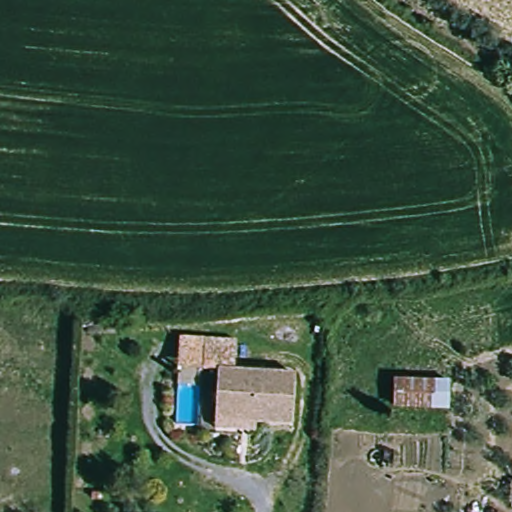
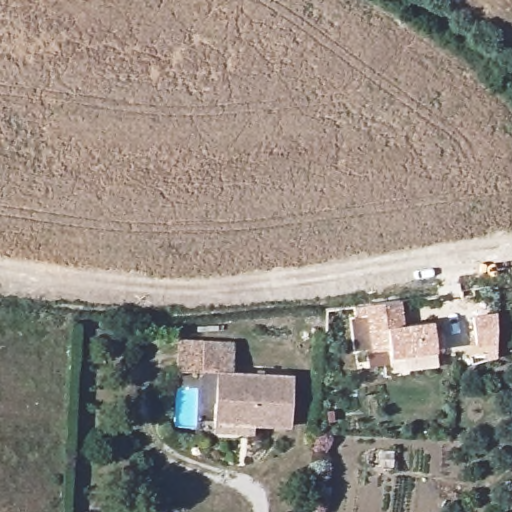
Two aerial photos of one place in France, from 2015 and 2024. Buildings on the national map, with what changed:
new [(403,303),(405,323),(435,320),(438,350),(391,355),(390,348),(373,350),(368,307),(403,303)]
new [(497,343),(475,345),(471,315),(498,312),(497,343)]
unchanged [(229,337),(228,367),(290,369),(288,438),(210,435),(212,367),(197,367),(197,357),(198,337),(229,337)]

